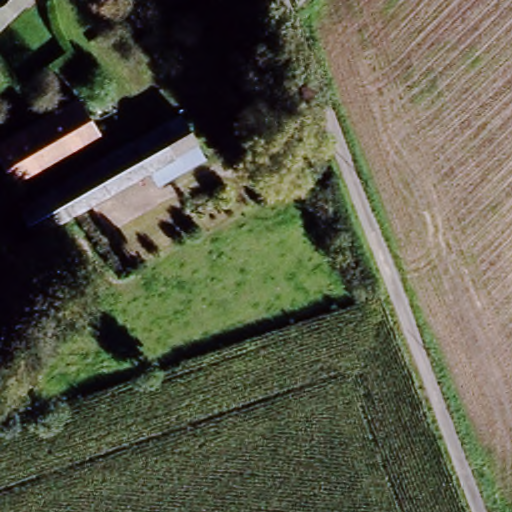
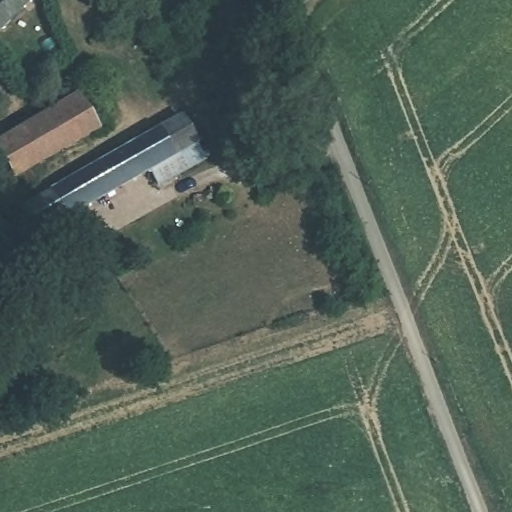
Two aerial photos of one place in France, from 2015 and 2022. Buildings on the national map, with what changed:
unchanged [(5,17),(0,12),(0,0),(23,0),(5,17)]
unchanged [(97,138),(5,171),(0,157),(0,129),(82,99),(97,138)]
unchanged [(151,185),(145,171),(45,216),(34,190),(181,123),(199,162),(151,185)]

